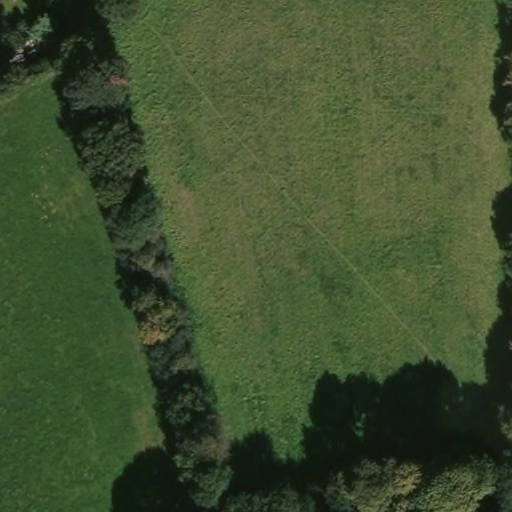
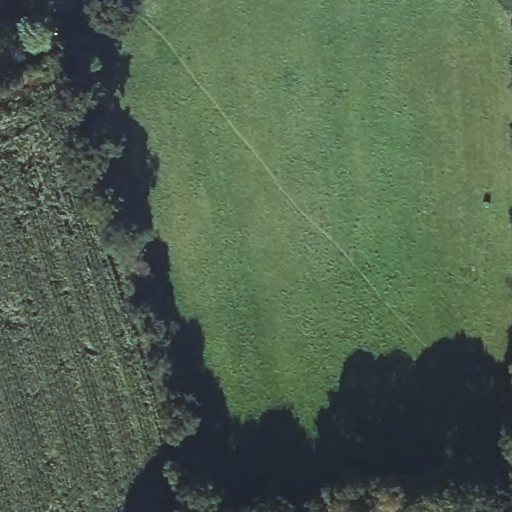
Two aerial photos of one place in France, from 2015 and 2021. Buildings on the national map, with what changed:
[]

